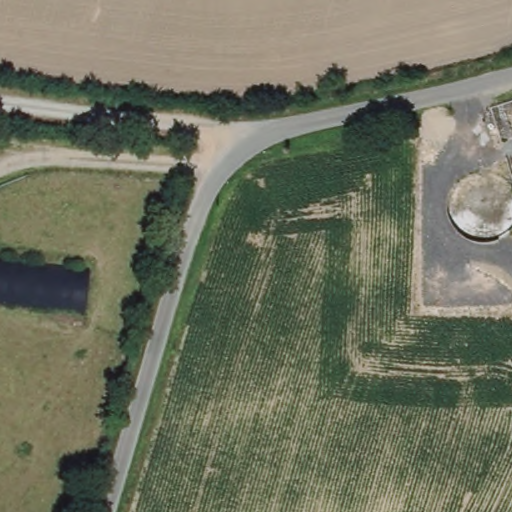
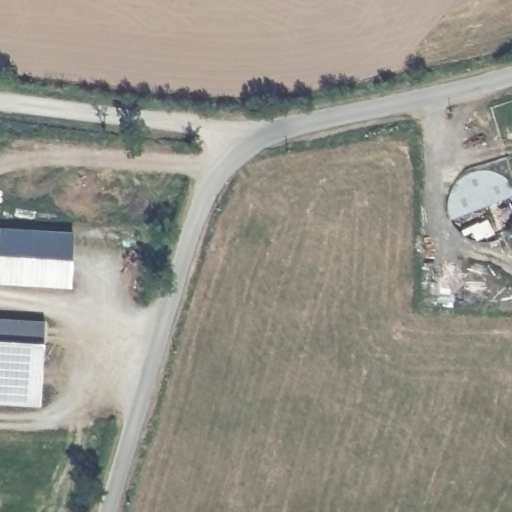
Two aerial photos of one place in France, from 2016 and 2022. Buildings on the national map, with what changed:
new [(0,284),(0,229),(73,232),(70,289),(0,284)]
demolished [(0,301),(0,263),(87,274),(84,313),(0,301)]
new [(38,322),(35,404),(0,403),(0,321),(38,322)]

